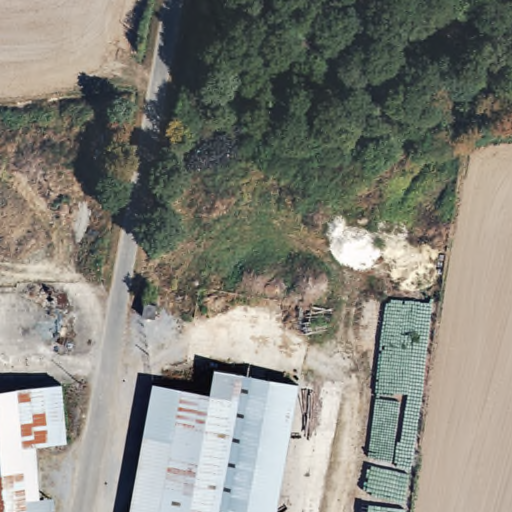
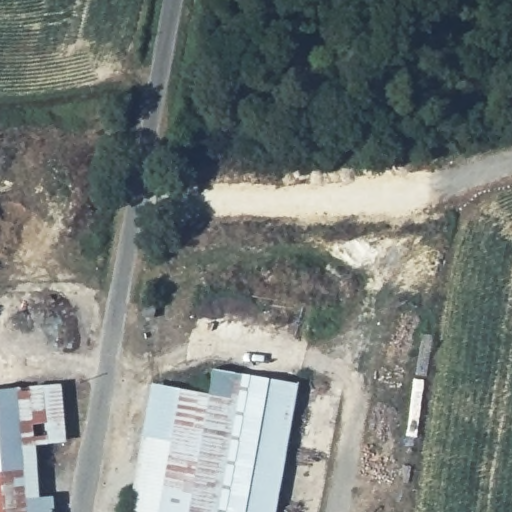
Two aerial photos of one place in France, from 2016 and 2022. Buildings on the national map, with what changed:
unchanged [(160,310),(157,326),(141,323),(144,307),(160,310)]
unchanged [(272,512),(128,512),(151,389),(189,396),(195,366),(295,385),(272,512)]
unchanged [(40,444),(16,446),(20,512),(0,512),(0,392),(37,390),(40,444)]

